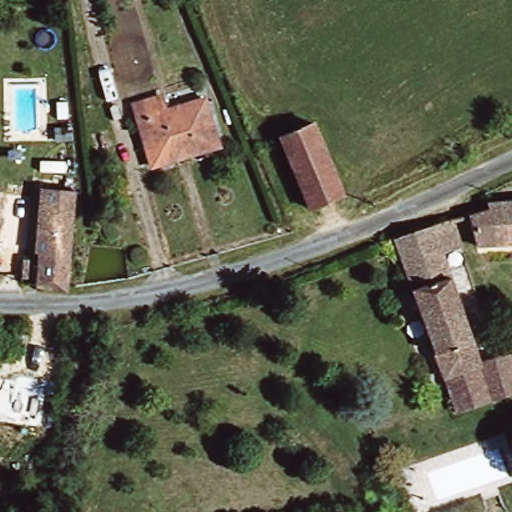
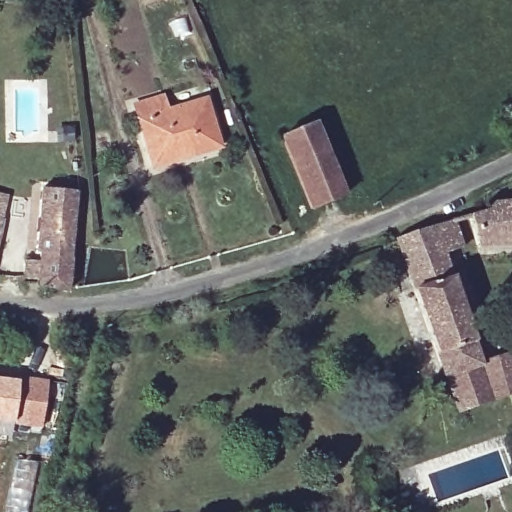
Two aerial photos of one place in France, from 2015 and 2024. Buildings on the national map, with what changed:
unchanged [(167,101),(171,118),(210,109),(221,155),(153,170),(138,109),(167,101)]
unchanged [(342,196),(311,210),(279,140),(311,126),(342,196)]
unchanged [(45,258),(40,258),(38,208),(37,191),(66,189),(68,205),(70,291),(43,290),(45,258)]
unchanged [(474,204),(512,202),(512,239),(460,245),(457,216),(472,213),(474,204)]
unchanged [(454,222),(461,248),(441,254),(480,364),(511,354),(512,352),(512,390),(454,410),(396,239),(416,234),(454,222)]
unchanged [(0,225),(4,226),(0,242),(0,225)]
new [(0,380),(18,382),(18,376),(49,380),(42,427),(11,424),(0,422),(0,380)]

